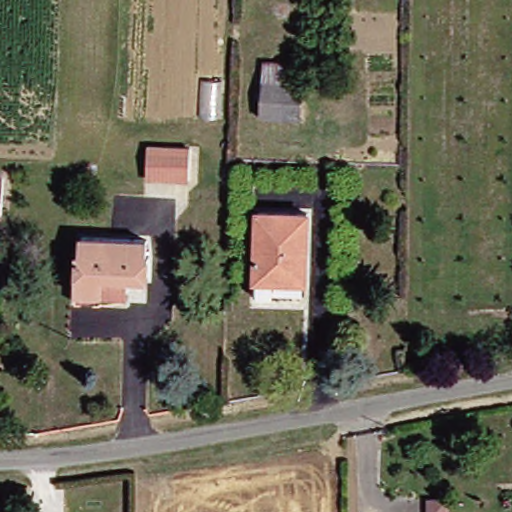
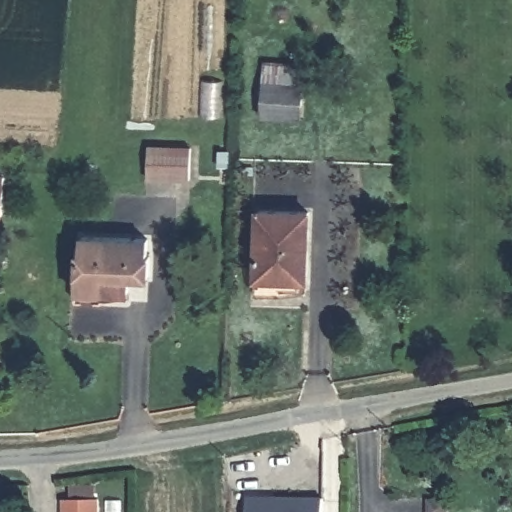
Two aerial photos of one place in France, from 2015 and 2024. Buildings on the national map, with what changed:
unchanged [(310,60),(308,116),(268,114),(270,61),(310,60)]
unchanged [(158,153),(200,155),(199,187),(156,185),(158,153)]
unchanged [(10,181),(10,216),(0,215),(0,180),(10,181)]
unchanged [(311,222),(310,283),(261,281),(265,220),(311,222)]
unchanged [(86,250),(89,250),(90,232),(153,237),(152,253),(155,254),(153,275),(137,273),(135,302),(84,299),(86,250)]
new [(320,512),(245,512),(245,498),(320,499),(320,512)]
new [(97,502),(97,512),(65,512),(65,502),(97,502)]

